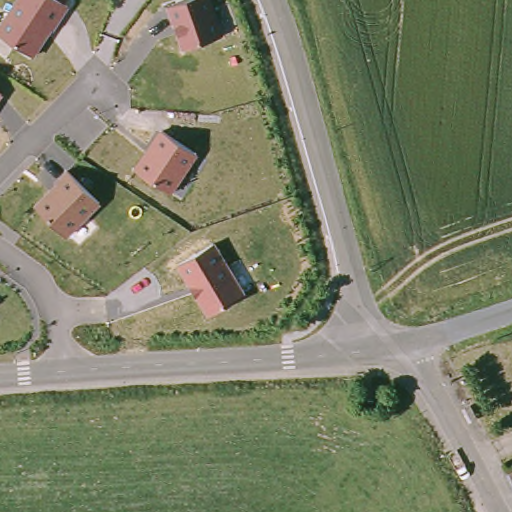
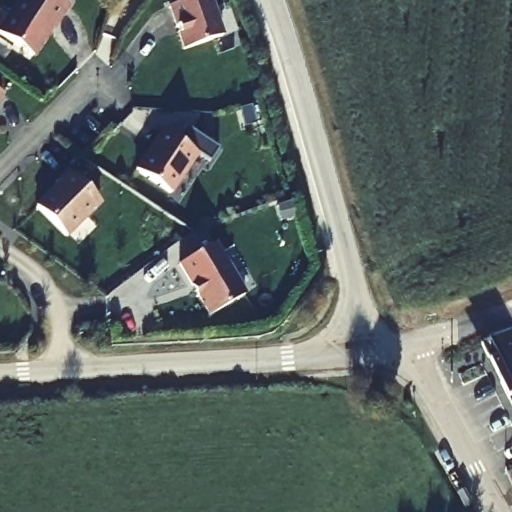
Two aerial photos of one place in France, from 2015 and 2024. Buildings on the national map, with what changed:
unchanged [(35,54),(0,32),(0,20),(13,0),(61,0),(67,5),(35,54)]
unchanged [(183,48),(169,5),(184,0),(215,0),(226,34),(183,48)]
unchanged [(0,98),(0,91),(3,93),(0,98)]
unchanged [(199,154),(175,193),(132,167),(157,128),(199,154)]
unchanged [(100,202),(66,236),(33,203),(66,170),(100,202)]
unchanged [(248,293),(205,316),(176,265),(217,240),(248,293)]
new [(481,346),(512,334),(512,405),(481,346)]

